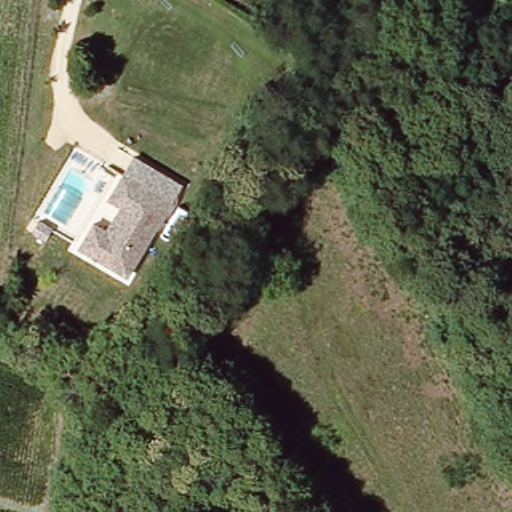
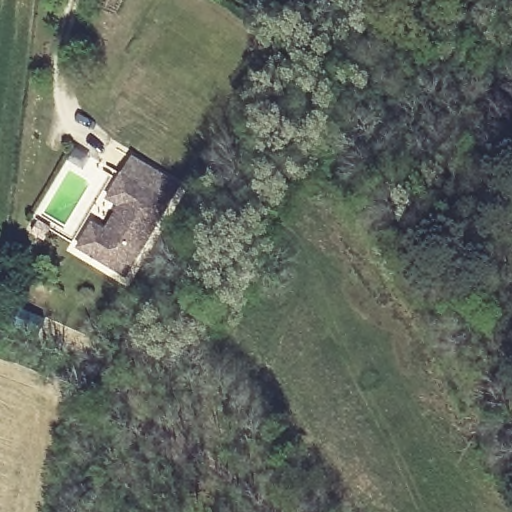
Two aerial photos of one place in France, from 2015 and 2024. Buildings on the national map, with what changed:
unchanged [(147,167),(177,185),(123,274),(76,248),(120,174),(137,184),(147,167)]

